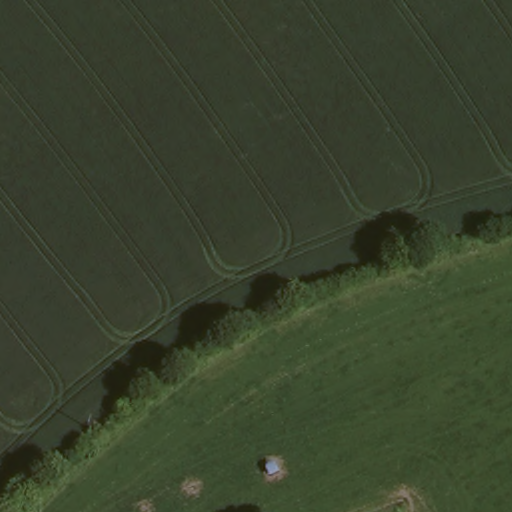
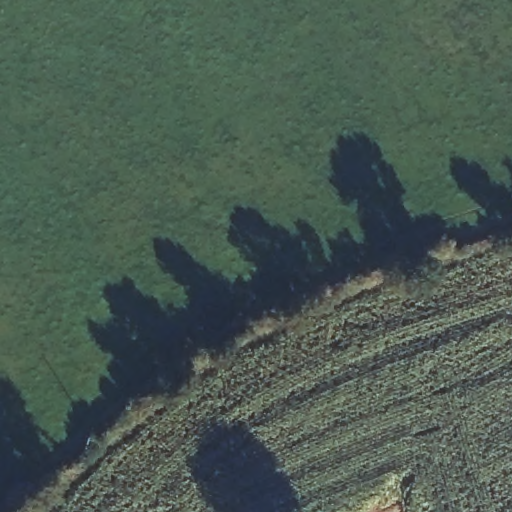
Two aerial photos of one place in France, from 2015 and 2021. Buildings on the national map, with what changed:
[]

